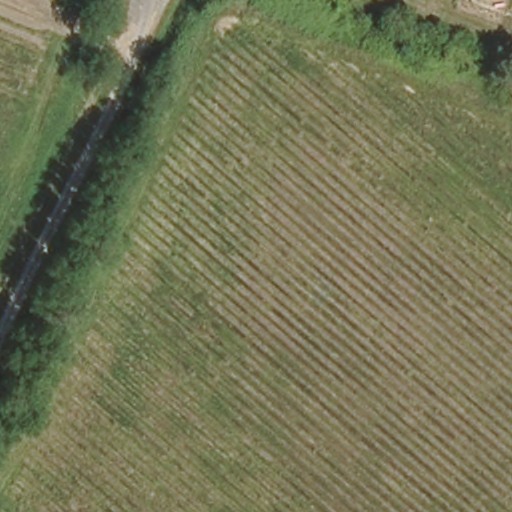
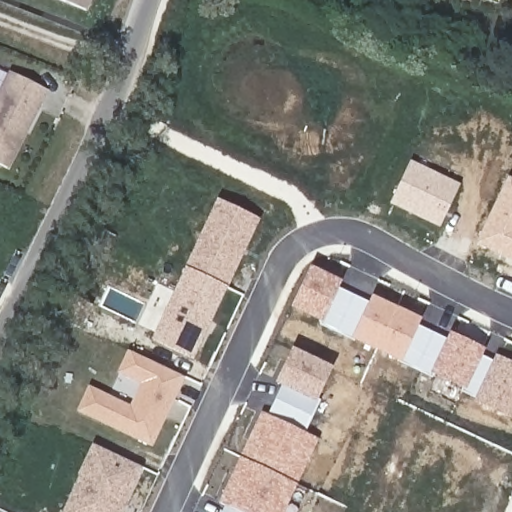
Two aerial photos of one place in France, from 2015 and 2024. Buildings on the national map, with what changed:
new [(61,0),(91,0),(87,11),(61,0)]
new [(10,169),(0,164),(0,88),(9,71),(49,91),(10,169)]
new [(390,203),(410,161),(460,186),(440,227),(390,203)]
new [(508,177),(512,179),(512,261),(476,244),(508,177)]
new [(260,221),(195,359),(152,341),(216,199),(260,221)]
new [(475,399),(461,391),(461,389),(433,375),(431,378),(400,363),(351,339),(320,325),(320,323),(290,309),(310,267),(341,281),(340,288),(370,302),(372,296),(421,319),(420,325),(447,338),(450,332),(485,349),(482,355),(493,360),(475,399)]
new [(287,389),(295,374),(282,368),(292,348),(332,367),(316,401),(315,402),(287,389)]
new [(125,356),(182,384),(152,448),(77,412),(88,386),(130,406),(140,385),(116,374),(125,356)]
new [(499,362),(501,356),(512,361),(512,419),(474,401),(493,359),(499,362)]
new [(219,503),(261,412),(268,415),(281,387),(275,384),(282,368),(295,374),(287,389),(315,402),(301,431),(319,439),(285,512),(238,512),(219,503)]
new [(124,512),(62,512),(91,443),(143,467),(124,512)]
new [(225,506),(238,512),(222,512),(225,506)]

